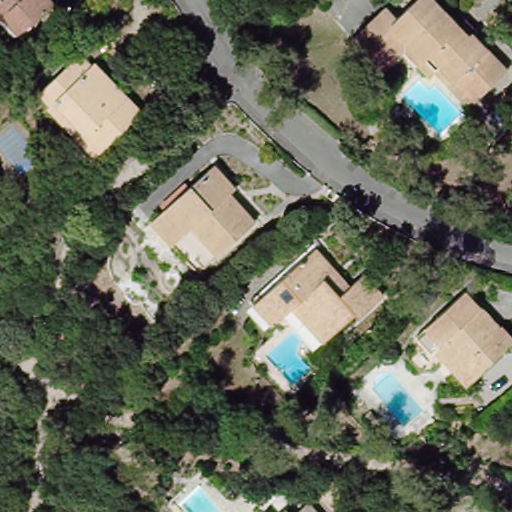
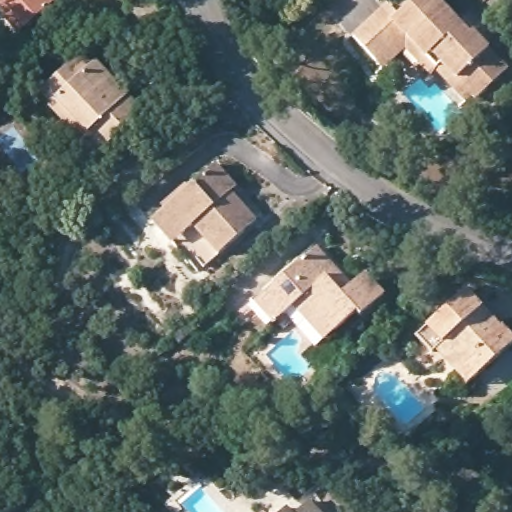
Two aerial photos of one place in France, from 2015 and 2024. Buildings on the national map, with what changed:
unchanged [(7,19),(0,11),(0,0),(49,0),(56,7),(28,32),(20,40),(3,22),(7,19)]
unchanged [(424,62),(403,39),(377,66),(352,42),(385,9),(396,22),(418,0),(431,0),(467,37),(470,36),(506,73),(475,104),(469,97),(429,56),(424,62)]
unchanged [(461,106),(432,75),(427,79),(403,53),(383,72),(377,66),(403,39),(424,62),(429,56),(469,97),(461,106)]
unchanged [(52,115),(55,113),(43,102),(82,64),(93,76),(97,72),(143,121),(106,157),(98,164),(52,115)]
unchanged [(157,222),(211,174),(224,188),(232,197),(226,202),(252,231),(195,281),(169,252),(149,230),(157,222)]
unchanged [(275,330),(256,309),(251,303),(287,272),(291,277),(318,252),(337,275),(353,292),(367,278),(386,299),(362,322),(358,317),(334,338),(326,346),(295,311),(275,330)]
unchanged [(512,345),(469,384),(436,348),(433,351),(418,335),(468,290),(483,306),(501,327),(504,325),(512,332),(512,345)]
unchanged [(310,506),(315,512),(304,512),(310,506)]

